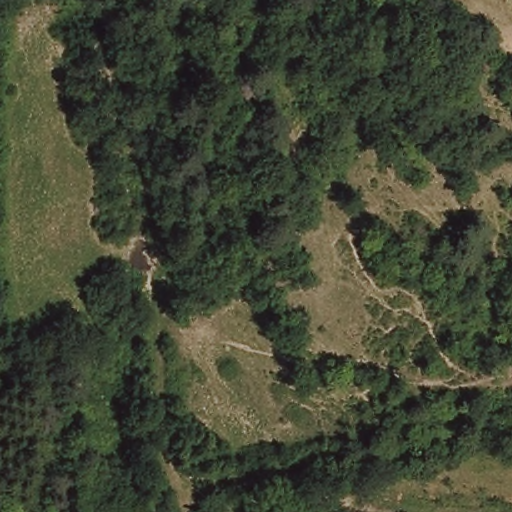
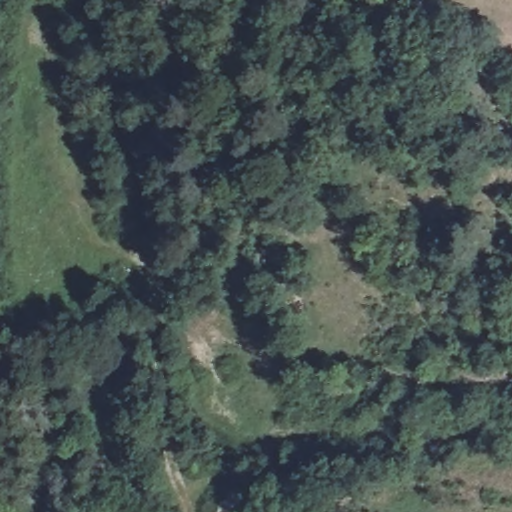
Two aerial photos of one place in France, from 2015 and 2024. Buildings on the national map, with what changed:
unchanged [(242,490),(228,512),(215,512),(231,487),(242,490)]

